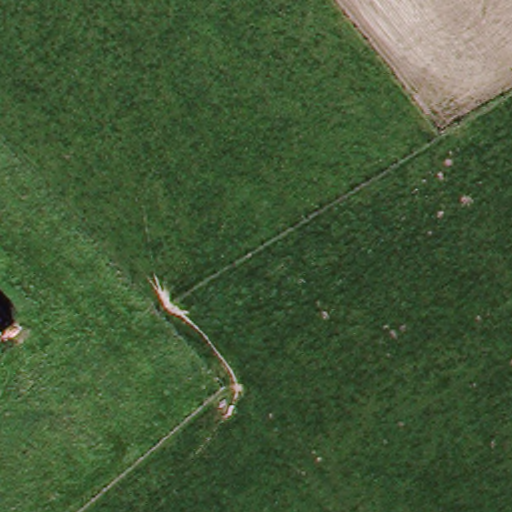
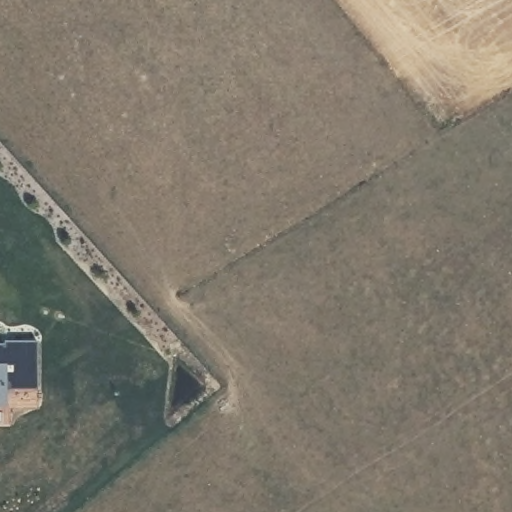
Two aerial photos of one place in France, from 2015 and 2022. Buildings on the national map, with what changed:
demolished [(18,320),(0,336),(0,300),(18,320)]
new [(8,348),(8,345),(41,345),(41,395),(9,395),(9,410),(0,410),(0,348),(8,348)]

